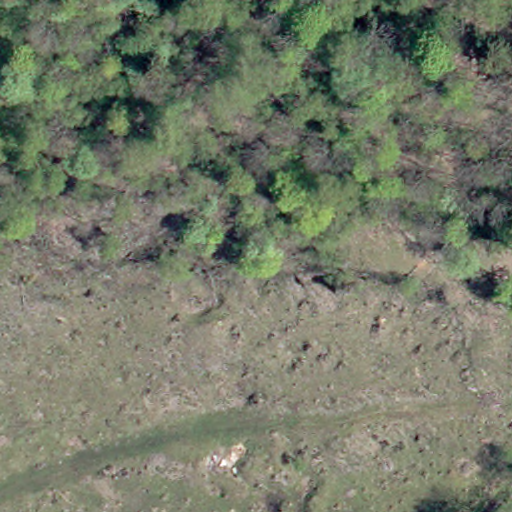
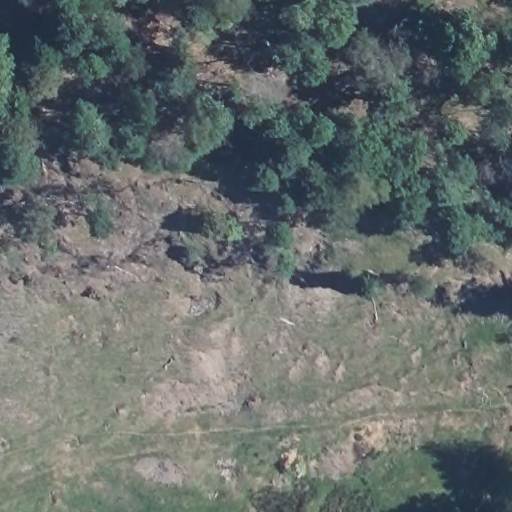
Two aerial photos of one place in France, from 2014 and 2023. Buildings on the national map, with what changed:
[]

